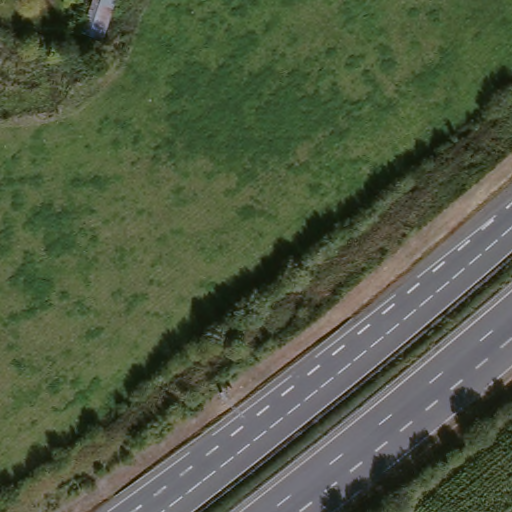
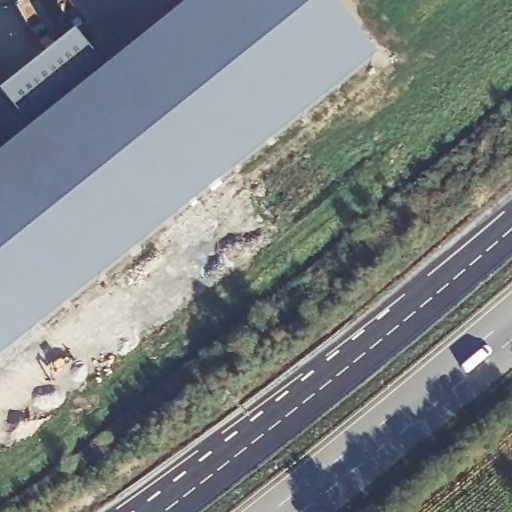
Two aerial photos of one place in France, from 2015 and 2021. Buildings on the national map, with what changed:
new [(194,0),(326,0),(374,59),(0,361),(0,156),(194,0)]

